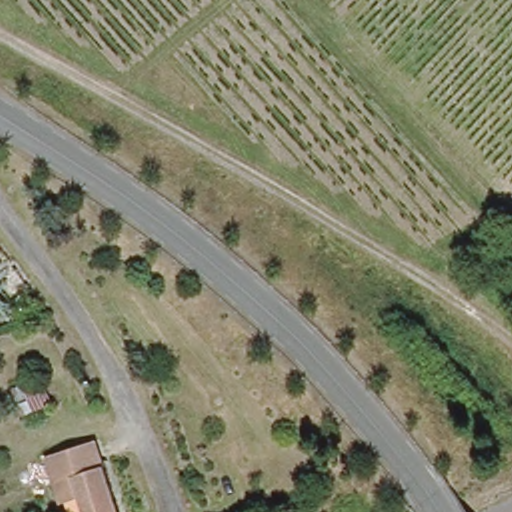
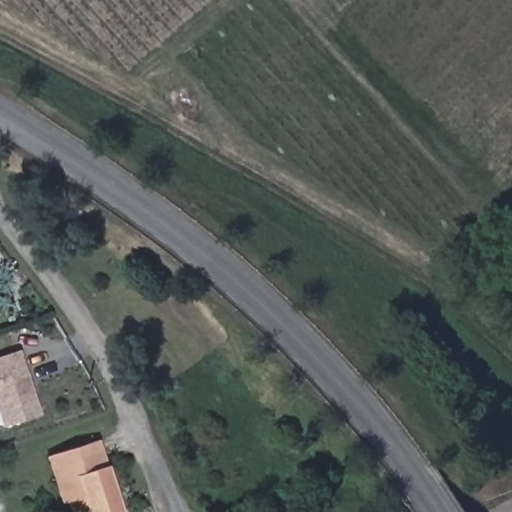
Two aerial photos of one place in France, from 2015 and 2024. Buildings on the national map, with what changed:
new [(0,405),(0,358),(22,350),(28,367),(34,385),(44,415),(8,427),(0,405)]
unchanged [(73,503),(66,506),(49,459),(99,443),(122,512),(75,512),(73,503)]

